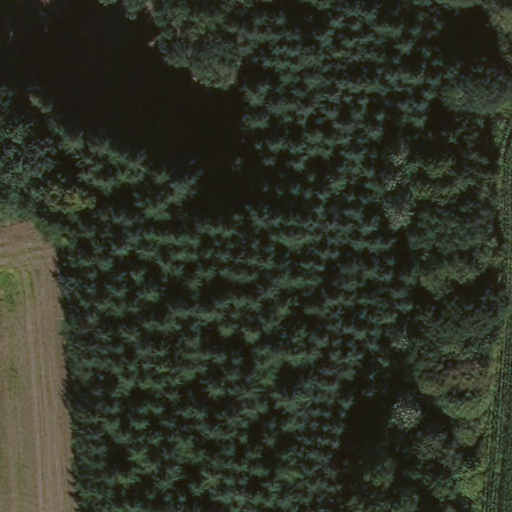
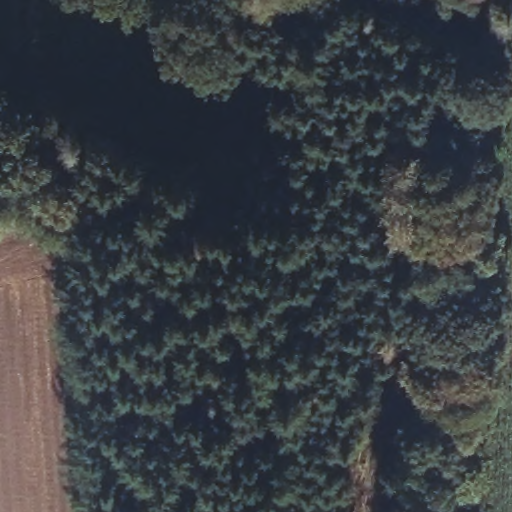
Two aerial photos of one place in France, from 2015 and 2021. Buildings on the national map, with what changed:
[]

